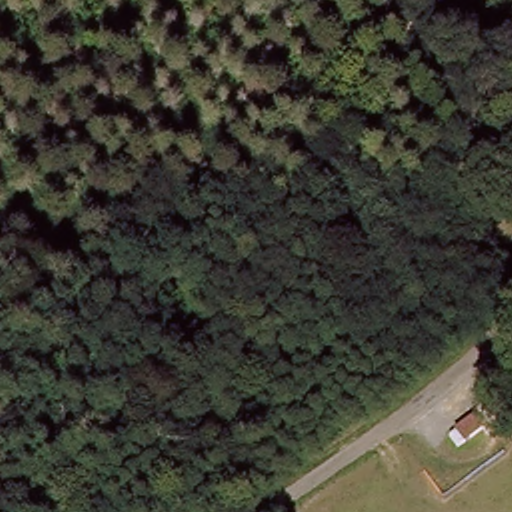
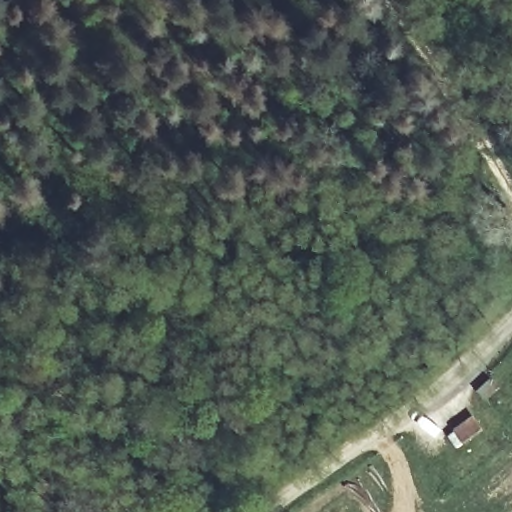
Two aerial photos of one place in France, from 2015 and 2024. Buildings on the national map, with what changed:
unchanged [(473,392),(470,387),(476,382),(486,373),(493,382),(477,397),(476,397),(473,392)]
unchanged [(458,445),(448,434),(466,420),(468,417),(478,428),(477,429),(458,445)]

